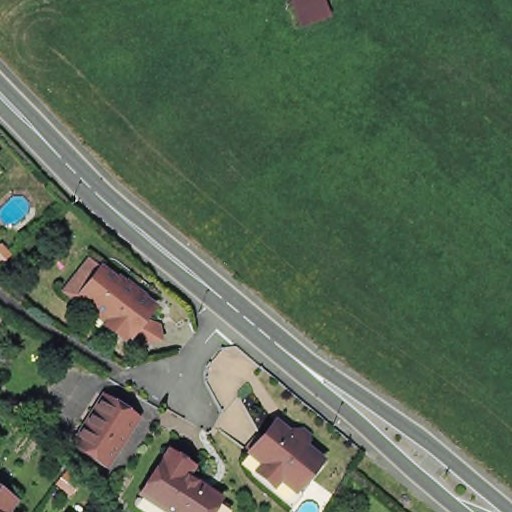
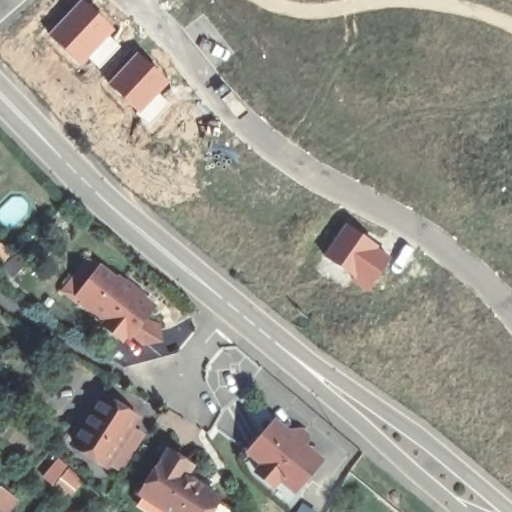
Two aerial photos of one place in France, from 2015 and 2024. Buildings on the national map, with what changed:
new [(82,0),(83,0),(115,31),(79,65),(50,35),(82,0)]
demolished [(290,0),(317,0),(326,21),(297,30),(286,1),(290,0)]
new [(138,51),(170,82),(138,116),(109,84),(138,51)]
unchanged [(2,147),(0,151),(0,146),(2,147)]
new [(346,222),(391,257),(369,293),(324,257),(346,222)]
unchanged [(122,285),(156,312),(131,343),(128,341),(125,346),(106,331),(65,298),(91,264),(103,274),(120,287),(122,285)]
unchanged [(133,420),(104,465),(73,445),(100,400),(133,420)]
unchanged [(281,485),(274,491),(257,476),(263,470),(248,457),(273,426),(291,440),(295,435),(302,433),(311,440),(309,447),(306,453),(321,467),(297,497),(281,485)]
unchanged [(160,512),(133,494),(161,452),(184,467),(178,476),(210,499),(222,506),(218,512),(160,512)]
unchanged [(18,501),(10,512),(0,512),(0,487),(18,501)]
new [(293,512),(299,504),(312,512),(293,512)]

